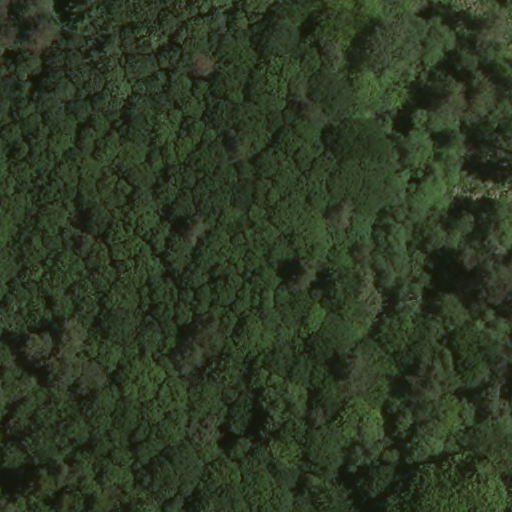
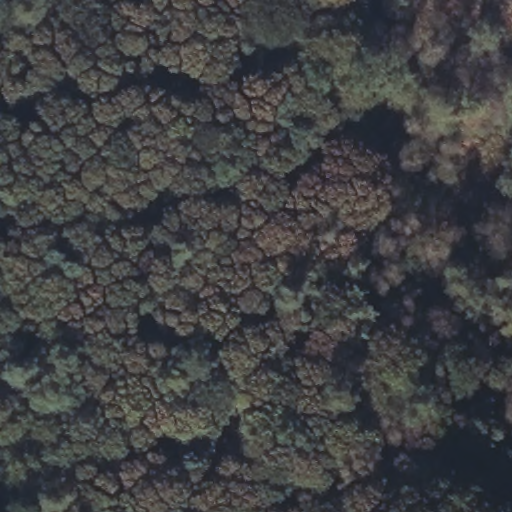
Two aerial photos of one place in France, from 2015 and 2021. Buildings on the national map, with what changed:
[]

